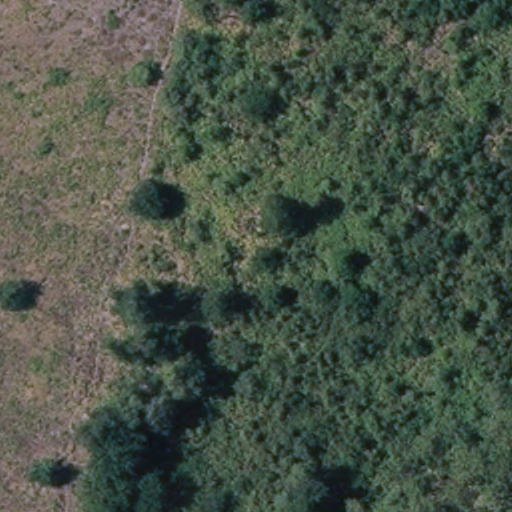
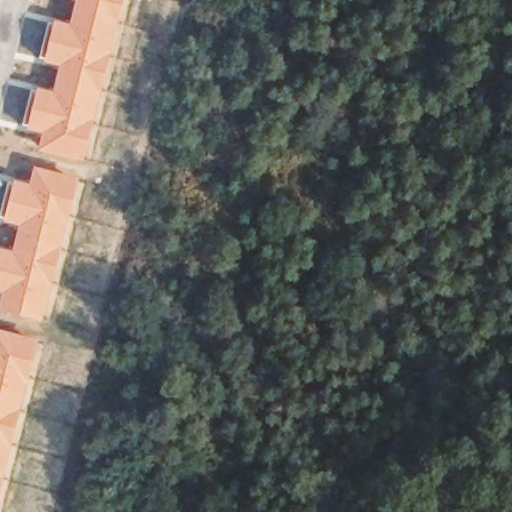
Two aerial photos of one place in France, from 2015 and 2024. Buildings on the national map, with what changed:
new [(53,92),(60,67),(45,62),(56,21),(71,24),(77,0),(125,0),(85,163),(38,153),(42,133),(28,130),(38,89),(53,92)]
new [(19,226),(4,223),(15,180),(30,184),(35,167),(80,178),(43,322),(0,311),(0,307),(3,293),(0,293),(0,248),(13,251),(19,226)]
new [(39,339),(0,490),(0,329),(39,339)]

